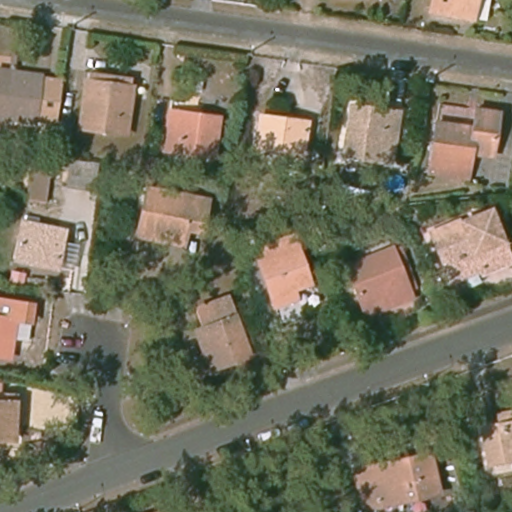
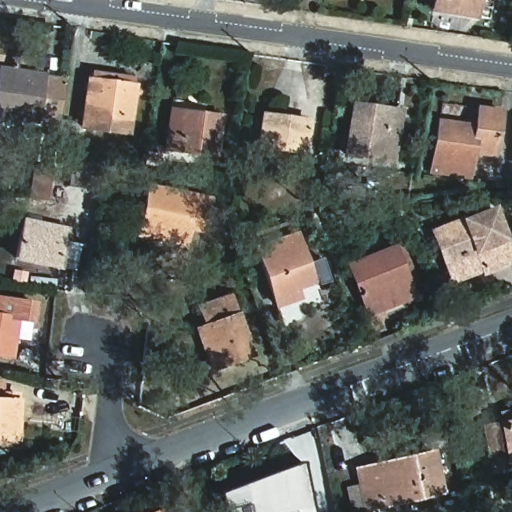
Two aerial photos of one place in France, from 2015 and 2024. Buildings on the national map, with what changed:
unchanged [(434,0),(474,0),(472,16),(433,12),(434,0)]
unchanged [(35,123),(35,125),(0,120),(0,73),(17,75),(39,79),(39,81),(61,85),(55,126),(35,123)]
unchanged [(79,130),(86,84),(87,75),(132,81),(131,89),(125,135),(79,130)]
unchanged [(168,154),(175,114),(176,103),(223,109),(221,120),(215,160),(168,154)]
unchanged [(495,157),(474,154),(470,180),(432,174),(440,125),(443,105),(479,110),(502,114),(495,157)]
unchanged [(392,164),(343,156),(348,117),(349,107),(365,110),(398,115),(392,164)]
unchanged [(260,149),(265,116),(279,119),(310,123),(309,130),(305,154),(260,149)]
unchanged [(55,127),(69,129),(66,159),(51,157),(55,127)]
unchanged [(70,158),(101,161),(98,190),(68,185),(70,158)]
unchanged [(44,168),(58,170),(54,201),(39,199),(44,168)]
unchanged [(161,239),(143,235),(155,187),(216,200),(209,231),(196,228),(194,237),(193,245),(161,239)]
unchanged [(447,276),(430,234),(488,210),(512,265),(482,277),(481,274),(451,286),(447,276)]
unchanged [(64,229),(57,267),(17,258),(25,221),(64,229)]
unchanged [(301,235),(317,283),(301,288),(304,300),(283,307),(261,250),(301,235)]
unchanged [(395,250),(412,294),(369,311),(351,266),(395,250)]
unchanged [(33,301),(31,317),(16,315),(10,353),(0,352),(0,296),(33,301)]
unchanged [(195,329),(206,325),(198,307),(208,304),(230,296),(251,355),(220,366),(210,370),(195,329)]
unchanged [(2,385),(1,397),(18,397),(17,441),(0,440),(0,385),(2,385)]
unchanged [(429,455),(439,495),(379,506),(370,465),(429,455)]
new [(217,489),(285,472),(284,467),(303,463),(315,512),(223,512),(217,489)]
unchanged [(169,511),(169,512),(165,512),(169,511)]

